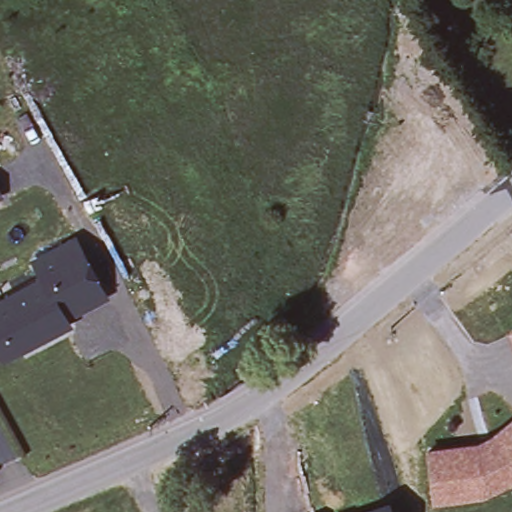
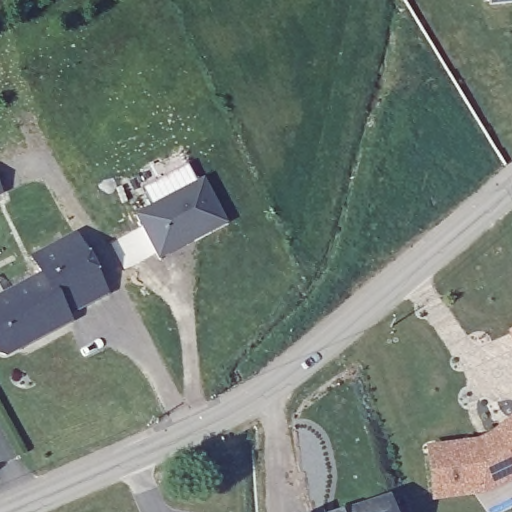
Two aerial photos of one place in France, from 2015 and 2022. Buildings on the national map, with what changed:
new [(203,180),(226,223),(158,258),(136,215),(203,180)]
unchanged [(69,321),(6,355),(0,353),(0,299),(43,276),(33,258),(75,236),(106,294),(66,315),(69,321)]
unchanged [(434,496),(429,453),(479,447),(493,440),(512,424),(512,483),(483,497),(435,503),(434,496)]
unchanged [(349,512),(387,500),(391,512),(349,512)]

